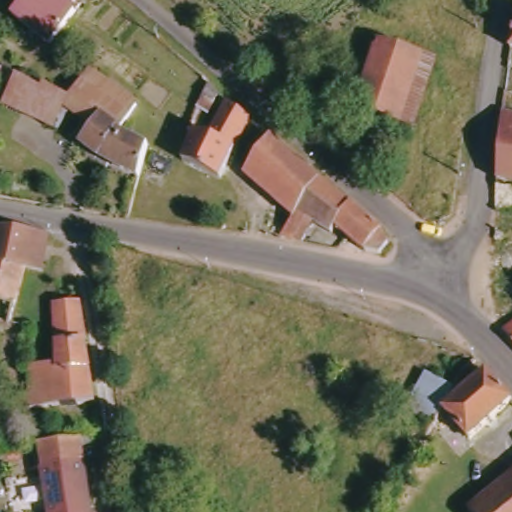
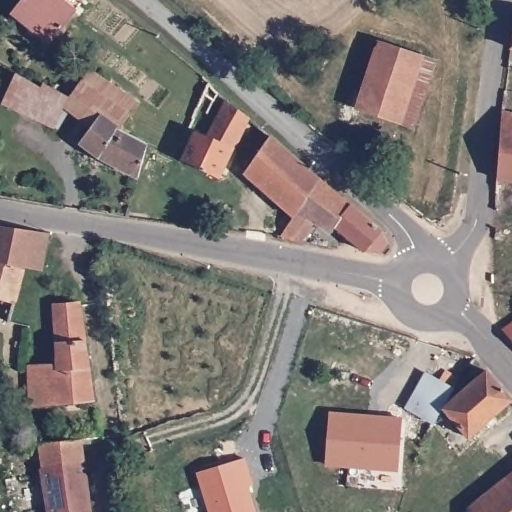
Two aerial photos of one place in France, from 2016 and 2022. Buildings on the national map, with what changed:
unchanged [(10,0),(70,0),(45,34),(7,4),(10,0)]
unchanged [(505,43),(512,13),(512,44),(505,43)]
unchanged [(428,53),(406,120),(361,105),(383,38),(428,53)]
unchanged [(112,124),(95,111),(80,101),(72,112),(57,101),(45,116),(0,95),(0,93),(10,68),(36,82),(39,79),(65,92),(84,65),(131,99),(112,124)]
unchanged [(208,114),(197,107),(209,81),(219,93),(208,114)]
unchanged [(220,174),(182,155),(195,125),(209,131),(227,95),(248,113),(220,174)]
unchanged [(497,174),(497,170),(502,107),(512,110),(512,177),(497,174)]
unchanged [(135,170),(93,150),(75,136),(95,111),(112,124),(115,125),(142,139),(135,170)]
unchanged [(315,174),(289,211),(239,167),(265,131),(315,174)]
unchanged [(315,174),(377,225),(382,238),(374,249),(359,246),(330,222),(325,229),(310,219),(297,236),(275,230),(289,211),(315,174)]
demolished [(512,181),(512,201),(495,200),(497,180),(512,181)]
unchanged [(20,262),(0,258),(0,222),(44,229),(36,266),(20,262)]
demolished [(489,286),(490,234),(512,234),(512,288),(489,286)]
unchanged [(0,295),(0,258),(20,262),(10,298),(0,295)]
unchanged [(84,354),(90,396),(50,400),(48,362),(52,362),(49,299),(74,297),(84,354)]
unchanged [(512,314),(512,344),(497,325),(512,314)]
unchanged [(50,400),(25,403),(24,360),(48,362),(50,400)]
unchanged [(467,430),(444,403),(487,366),(512,395),(467,430)]
unchanged [(434,418),(405,401),(425,367),(454,384),(434,418)]
new [(329,420),(330,410),(400,416),(400,426),(396,472),(325,467),(329,420)]
unchanged [(90,512),(49,512),(39,443),(81,439),(90,512)]
new [(250,477),(245,479),(255,512),(215,512),(202,471),(244,459),(250,477)]
unchanged [(469,512),(462,505),(512,465),(512,512),(469,512)]

